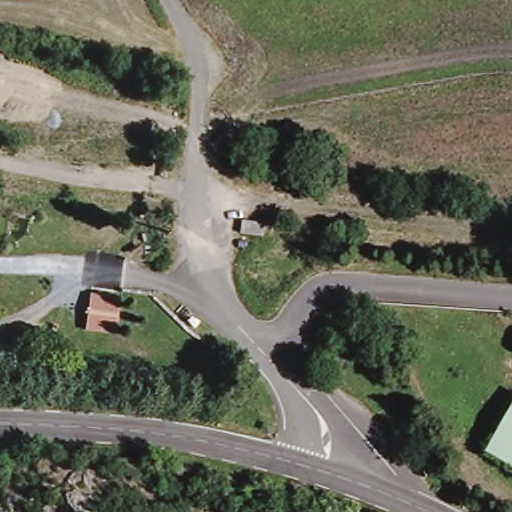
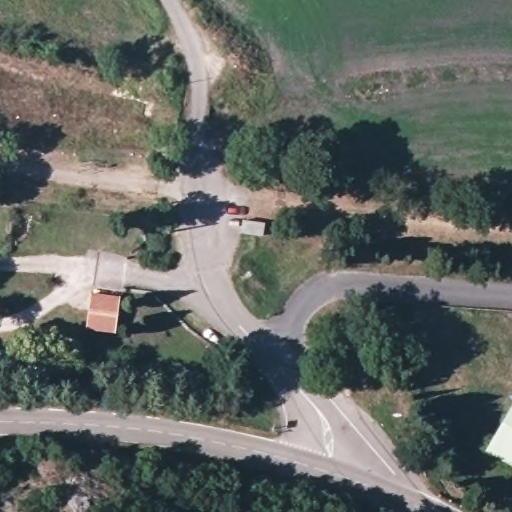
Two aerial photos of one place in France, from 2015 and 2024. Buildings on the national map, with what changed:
unchanged [(270,224),(267,240),(236,235),(238,217),(270,224)]
unchanged [(88,292),(118,289),(119,320),(90,323),(88,292)]
unchanged [(487,449),(512,409),(512,464),(487,449)]

